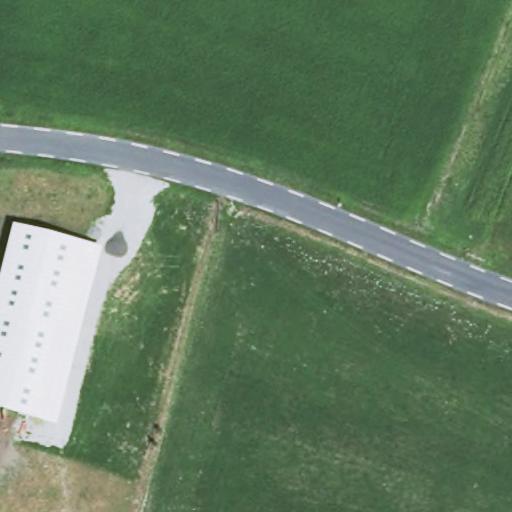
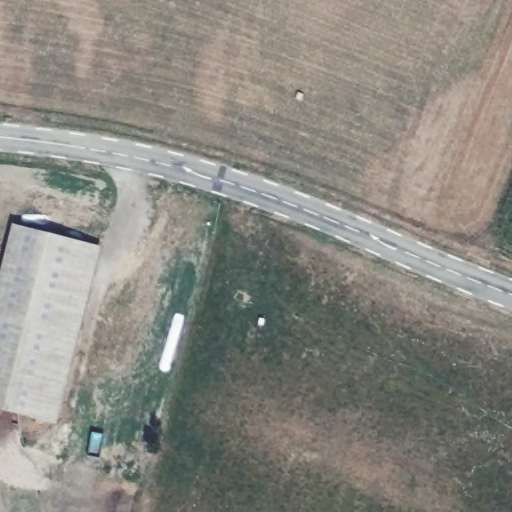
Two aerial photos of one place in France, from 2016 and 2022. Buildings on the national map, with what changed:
unchanged [(56,427),(0,412),(0,273),(12,225),(102,247),(56,427)]

